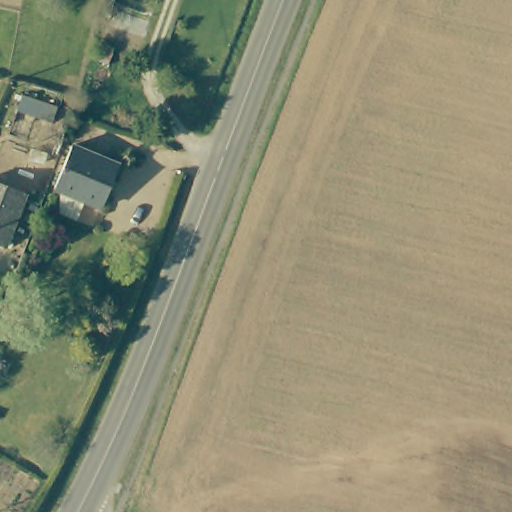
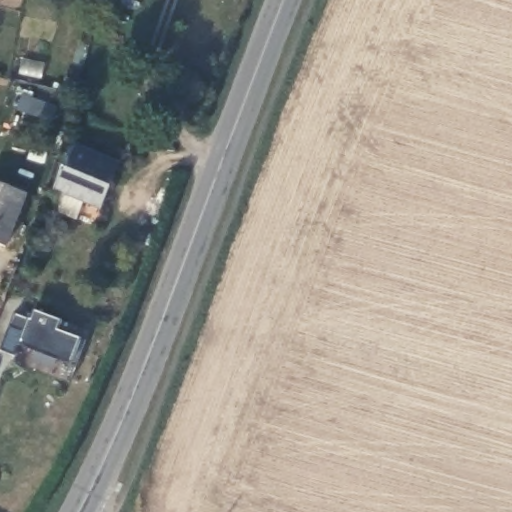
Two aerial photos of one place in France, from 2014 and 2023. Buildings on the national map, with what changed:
unchanged [(136,0),(145,0),(145,2),(136,0)]
unchanged [(98,213),(51,194),(70,149),(117,169),(98,213)]
unchanged [(4,247),(0,245),(0,183),(26,194),(4,247)]
new [(15,314),(29,319),(32,321),(36,312),(60,322),(56,331),(79,340),(71,364),(19,344),(14,356),(1,351),(15,314)]

